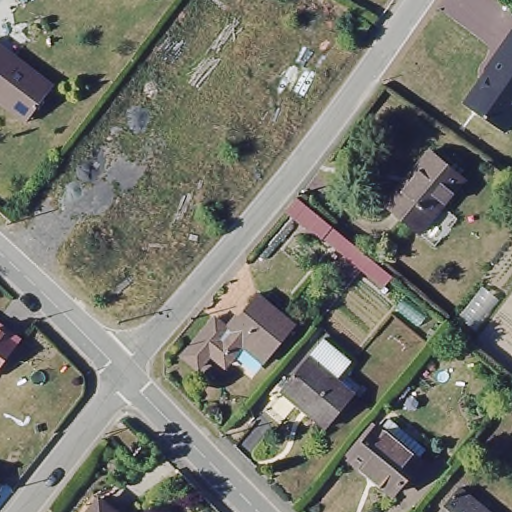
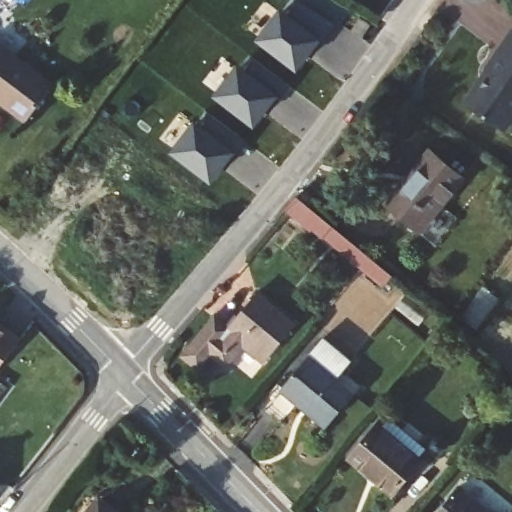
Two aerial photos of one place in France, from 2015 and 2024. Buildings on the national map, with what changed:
new [(279,9),(321,41),(297,72),(256,41),(279,9)]
unchanged [(371,25),(362,38),(350,32),(359,18),(371,25)]
unchanged [(512,121),(505,132),(462,102),(484,70),(482,69),(509,29),(512,31),(512,121)]
unchanged [(53,87),(26,122),(0,102),(0,46),(53,87)]
new [(213,97),(237,65),(279,96),(254,128),(213,97)]
new [(212,185),(170,153),(193,121),(237,152),(212,185)]
unchanged [(430,151),(463,179),(418,233),(389,208),(412,180),(408,177),(430,151)]
unchanged [(383,287),(362,269),(313,228),(310,231),(285,210),(297,197),(370,258),(392,276),(383,287)]
unchanged [(295,322),(265,358),(243,339),(225,360),(210,348),(198,363),(185,351),(215,315),(227,325),(255,290),(295,322)]
unchanged [(0,367),(0,329),(5,333),(7,330),(20,340),(0,367)]
unchanged [(351,361),(335,381),(353,395),(327,427),(297,403),(282,422),(265,409),(323,339),(351,361)]
unchanged [(425,449),(417,460),(420,462),(392,495),(350,460),(377,427),(380,429),(388,419),(425,449)]
unchanged [(476,512),(438,512),(453,493),(476,512)]
unchanged [(92,512),(101,501),(115,512),(92,512)]

